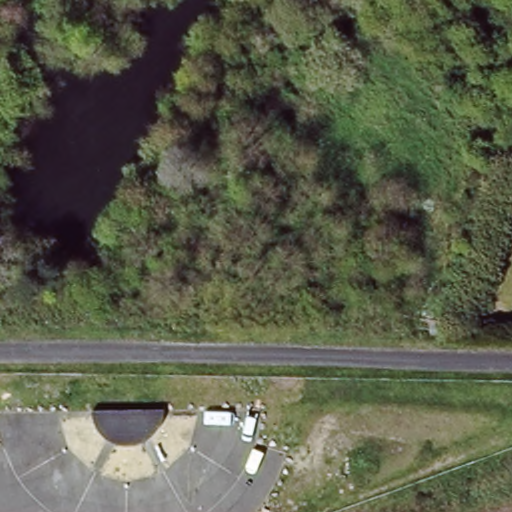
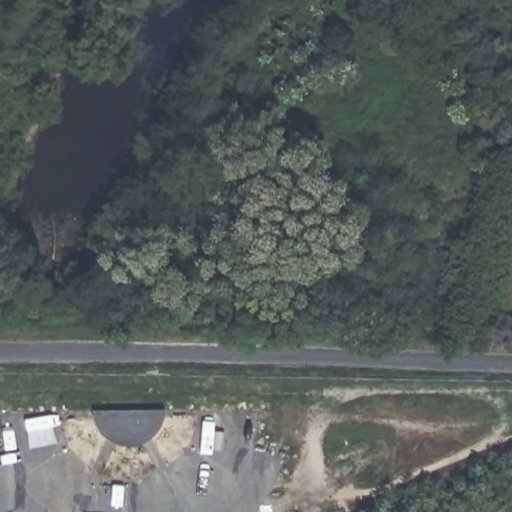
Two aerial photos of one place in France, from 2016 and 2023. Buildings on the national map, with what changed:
unchanged [(164,409),(163,417),(160,425),(155,433),(147,440),(138,443),(129,445),(120,445),(112,440),(103,433),(97,425),(95,420),(93,410),(164,409)]

